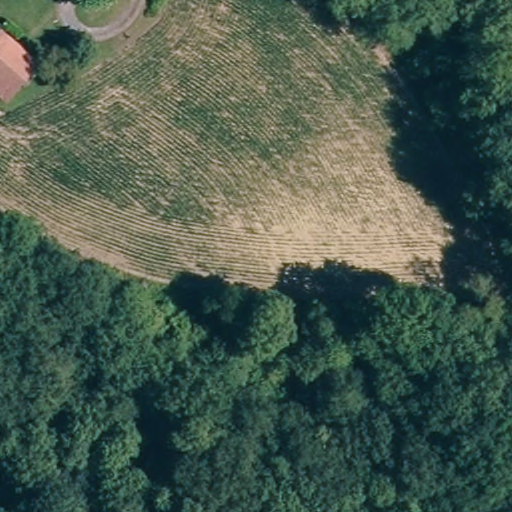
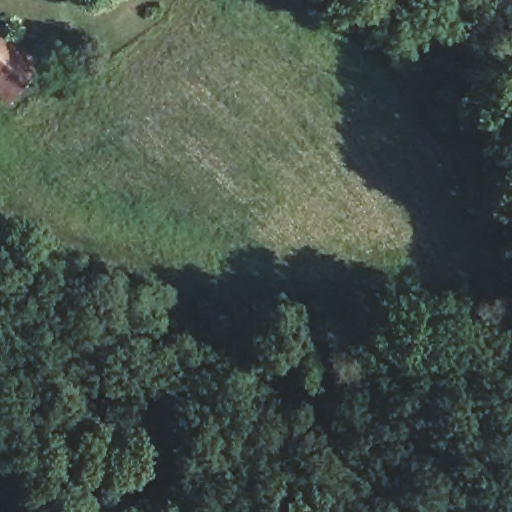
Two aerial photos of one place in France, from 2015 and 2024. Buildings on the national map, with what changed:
unchanged [(0,97),(0,45),(25,67),(0,97)]

